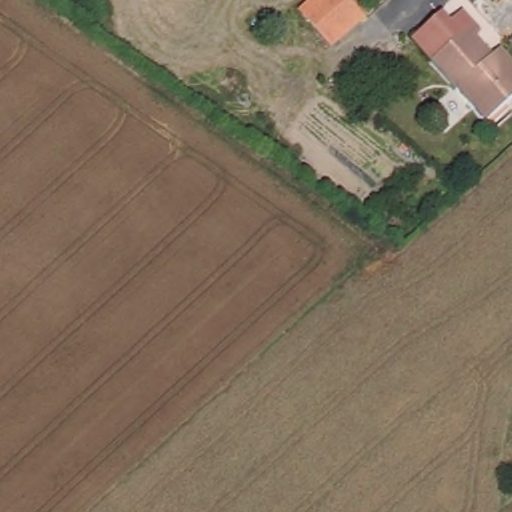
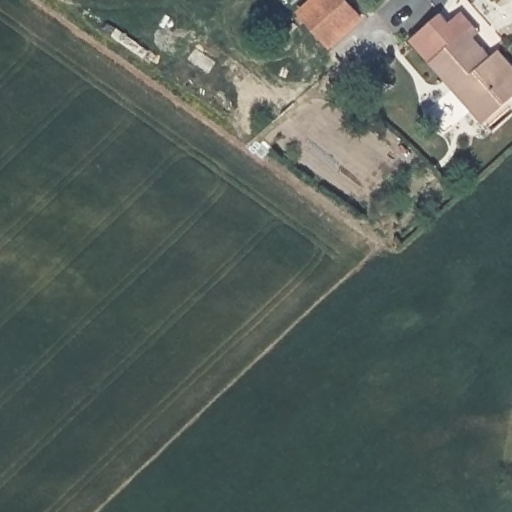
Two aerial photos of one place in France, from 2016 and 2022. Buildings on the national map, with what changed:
unchanged [(353,0),(366,15),(333,45),(298,9),(307,0),(353,0)]
unchanged [(433,62),(432,60),(411,39),(424,26),(441,11),(450,21),(461,11),(481,30),(475,35),(494,54),(501,47),(512,60),(512,99),(493,116),(487,121),(457,88),(433,62)]

